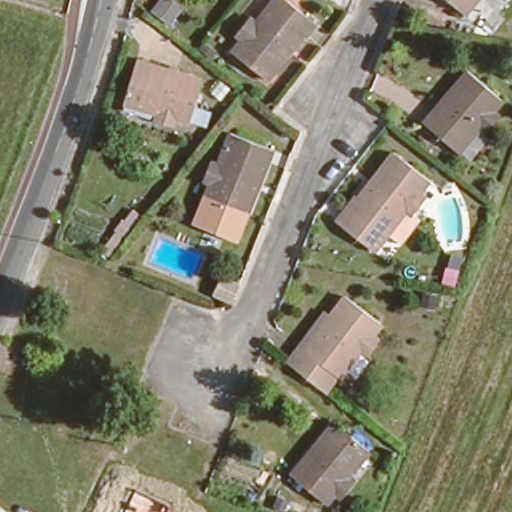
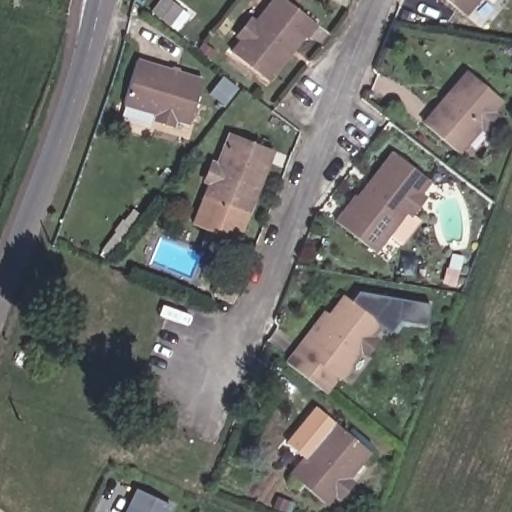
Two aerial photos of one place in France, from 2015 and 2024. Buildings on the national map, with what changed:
unchanged [(260,84),(226,55),(240,37),(234,31),(248,14),(257,19),(271,0),(294,0),(318,19),(306,33),(302,31),(260,84)]
unchanged [(450,0),(472,0),(462,11),(450,0)]
unchanged [(172,115),(170,125),(152,120),(156,110),(122,99),(135,57),(202,78),(190,120),(172,115)]
unchanged [(496,114),(484,128),(476,124),(455,149),(420,120),(465,66),(502,93),(488,107),(496,114)]
unchanged [(202,198),(207,183),(199,180),(206,161),(216,164),(230,131),(275,150),(247,215),(202,198)]
unchanged [(412,217),(403,210),(366,251),(330,218),(343,201),(347,204),(397,149),(431,180),(417,193),(427,201),(412,217)]
unchanged [(238,243),(191,226),(202,198),(247,215),(238,243)]
unchanged [(211,285),(207,290),(192,285),(197,270),(214,277),(211,285)]
unchanged [(385,320),(330,393),(290,365),(342,293),(385,320)]
unchanged [(343,484),(349,490),(337,502),(333,498),(325,507),(290,476),(332,423),(370,453),(343,484)]
new [(135,488),(172,505),(168,512),(123,512),(135,488)]

